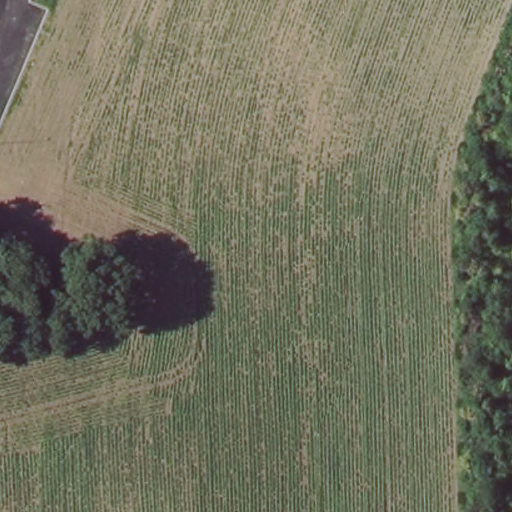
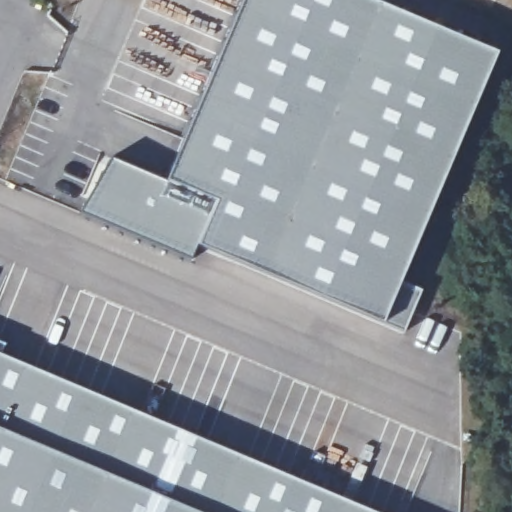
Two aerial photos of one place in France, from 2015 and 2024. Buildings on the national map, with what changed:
new [(400,285),(422,292),(405,331),(382,323),(198,245),(192,259),(82,212),(113,159),(167,182),(243,0),(371,0),(497,53),(400,285)]
new [(0,355),(371,512),(0,512),(0,355)]

